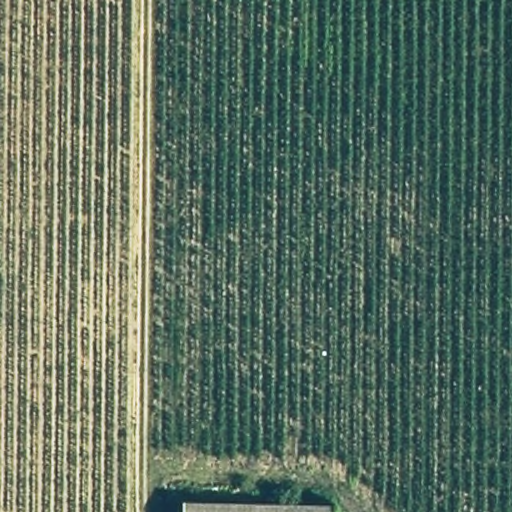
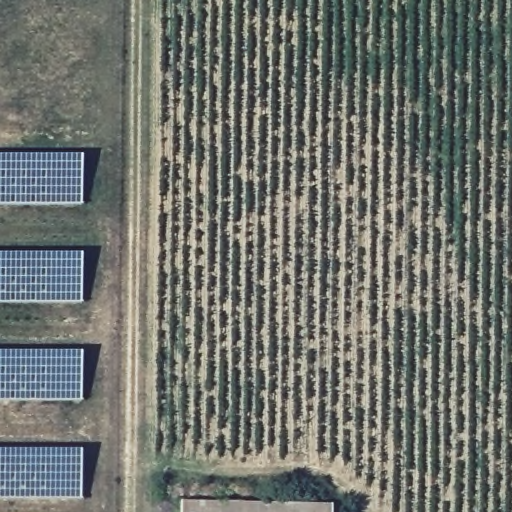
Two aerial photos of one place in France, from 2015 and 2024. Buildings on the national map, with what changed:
new [(80,205),(0,205),(0,157),(81,156),(80,205)]
new [(81,303),(0,303),(0,255),(81,255),(81,303)]
new [(80,401),(0,401),(0,353),(81,354),(80,401)]
new [(80,500),(0,499),(0,452),(80,452),(80,500)]
demolished [(180,506),(332,508),(332,512),(180,512),(180,506)]

